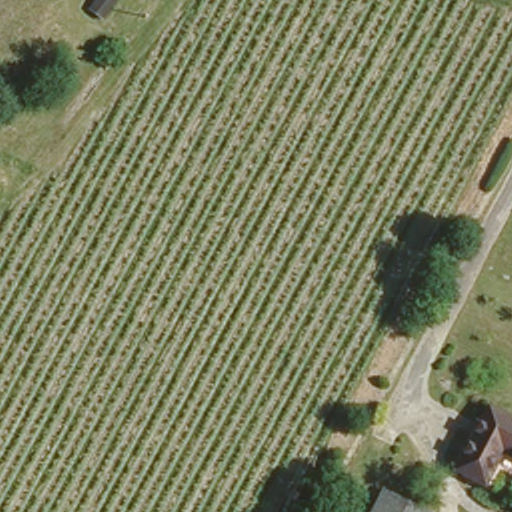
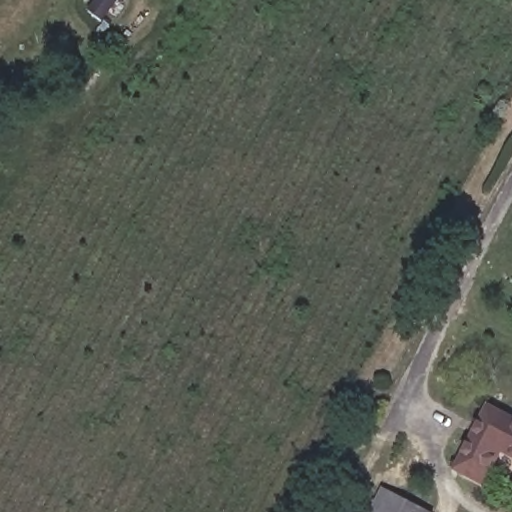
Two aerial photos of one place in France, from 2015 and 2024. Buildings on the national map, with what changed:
unchanged [(482,399),(512,414),(512,447),(498,440),(480,472),(451,457),(482,399)]
unchanged [(384,490),(423,512),(373,512),(384,490)]

